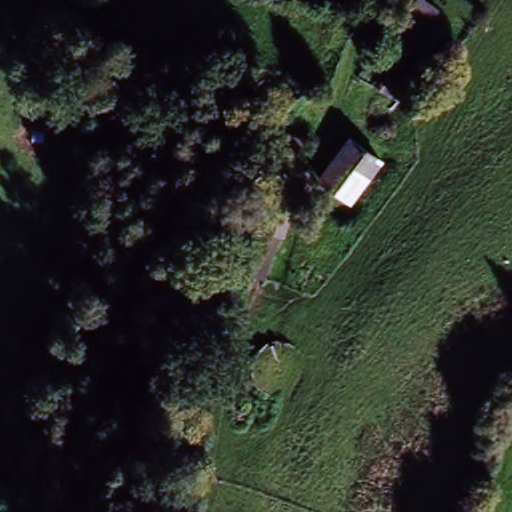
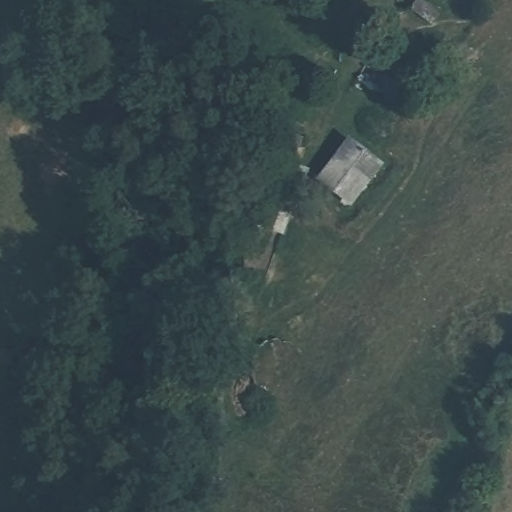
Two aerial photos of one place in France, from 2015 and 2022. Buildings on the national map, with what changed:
unchanged [(349,199),(317,176),(345,137),(377,159),(349,199)]
unchanged [(302,168),(259,282),(231,272),(249,219),(274,151),(302,168)]

